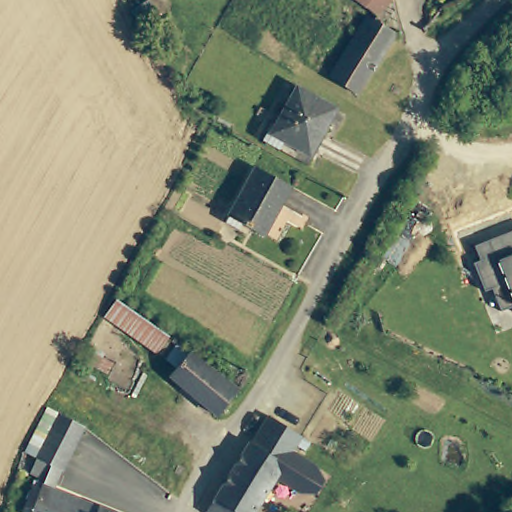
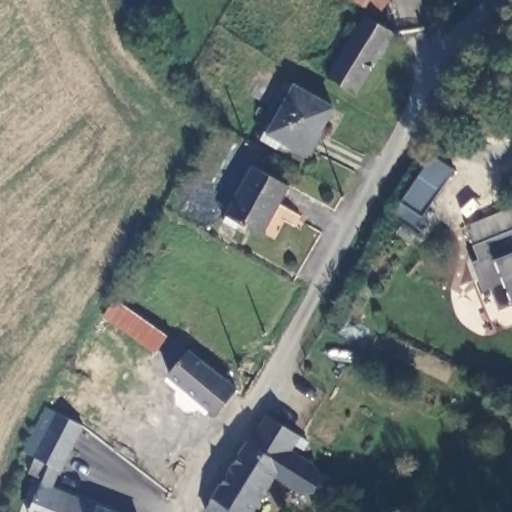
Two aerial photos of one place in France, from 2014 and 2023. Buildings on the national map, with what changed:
unchanged [(368,1),(366,0),(388,0),(382,10),(368,1)]
unchanged [(331,75),(367,18),(396,36),(361,93),(331,75)]
unchanged [(307,155),(270,133),(297,88),(333,110),(307,155)]
new [(433,152),(455,167),(422,215),(400,200),(433,152)]
unchanged [(254,163),(290,184),(261,233),(224,212),(254,163)]
unchanged [(500,314),(491,291),(483,294),(472,266),(479,263),(474,248),(512,233),(512,310),(500,314)]
unchanged [(110,317),(122,302),(161,332),(148,348),(110,317)]
unchanged [(238,388),(217,416),(168,379),(191,352),(238,388)]
unchanged [(41,487),(41,488),(50,465),(33,456),(24,450),(46,406),(56,413),(80,430),(60,473),(59,472),(49,494),(95,512),(96,509),(104,512),(31,512),(41,487)]
unchanged [(202,510),(245,441),(247,442),(264,414),(280,422),(298,432),(289,447),(313,463),(320,476),(312,489),(297,489),(272,474),(249,512),(205,512),(202,510)]

